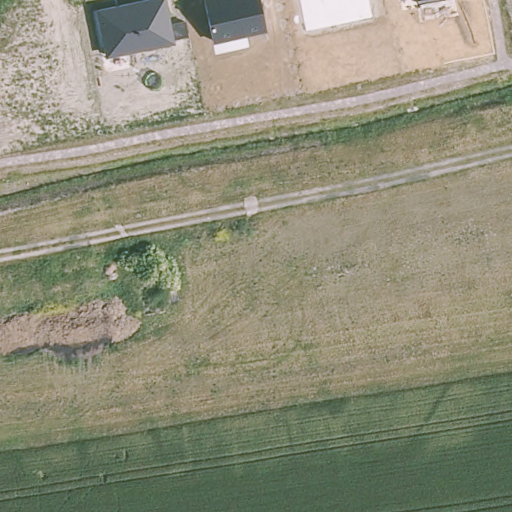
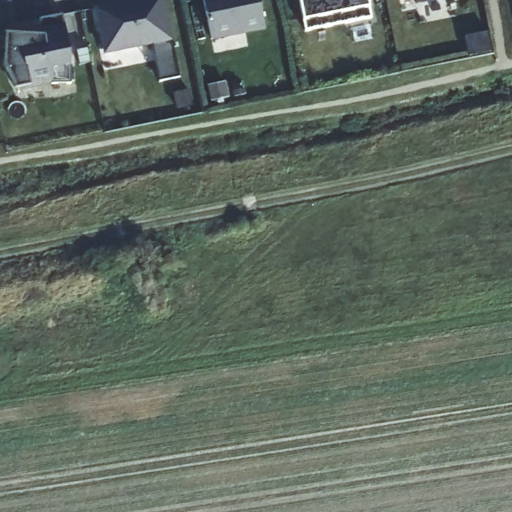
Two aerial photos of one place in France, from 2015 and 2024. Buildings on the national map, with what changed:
unchanged [(126,0),(167,0),(171,18),(187,16),(190,35),(104,54),(95,5),(126,0)]
unchanged [(267,29),(212,39),(205,0),(261,0),(267,29)]
unchanged [(375,18),(306,31),(300,0),(371,0),(375,18)]
unchanged [(417,3),(416,0),(434,0),(417,3)]
new [(5,32),(20,33),(22,36),(40,18),(63,13),(72,50),(72,83),(53,83),(52,80),(30,80),(17,87),(5,64),(5,32)]

